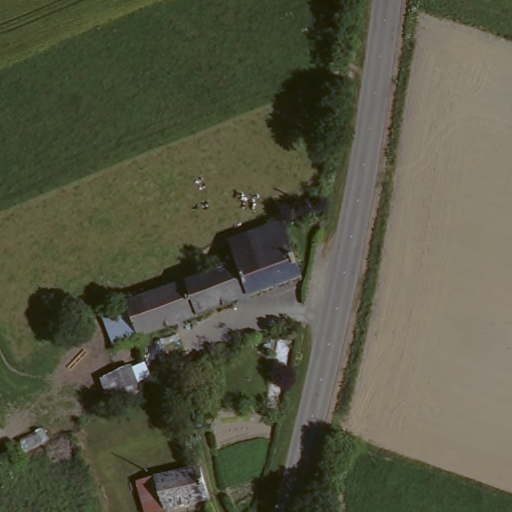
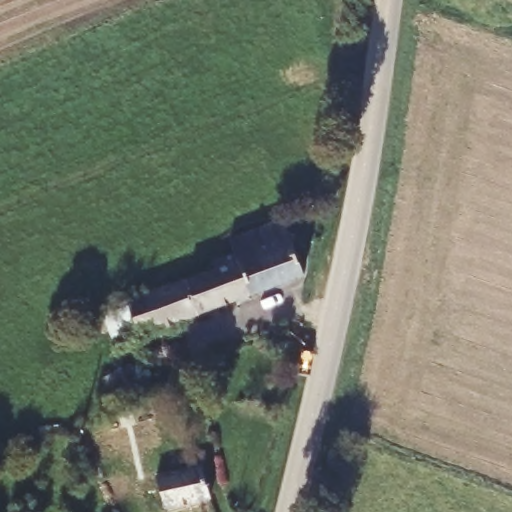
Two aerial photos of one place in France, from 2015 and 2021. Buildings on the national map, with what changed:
unchanged [(310,267),(309,271),(115,348),(104,321),(131,310),(129,305),(248,256),(240,236),(290,217),(310,267)]
unchanged [(207,496),(208,502),(160,510),(154,476),(202,468),(207,496)]

